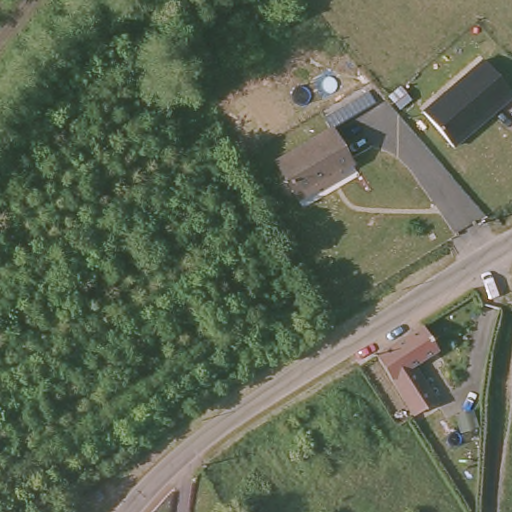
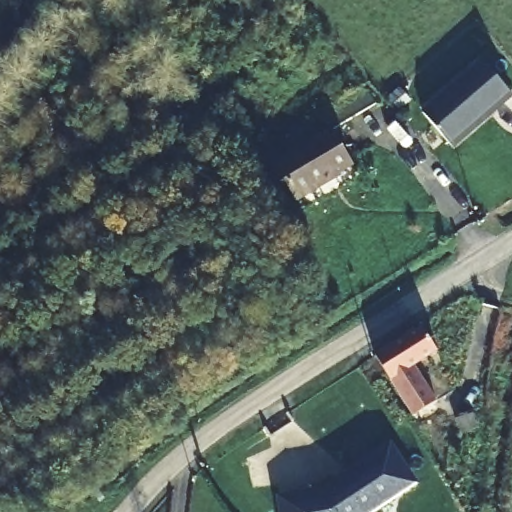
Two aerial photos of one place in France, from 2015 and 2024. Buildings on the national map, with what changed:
unchanged [(423,108),(482,56),(511,91),(451,141),(423,108)]
unchanged [(276,164),(334,128),(343,142),(363,134),(371,149),(354,162),(356,170),(299,205),(276,164)]
unchanged [(446,363),(417,380),(433,408),(419,416),(417,414),(410,418),(374,356),(429,332),(446,363)]
new [(322,487),(392,441),(419,483),(376,512),(280,512),(278,494),(322,487)]

